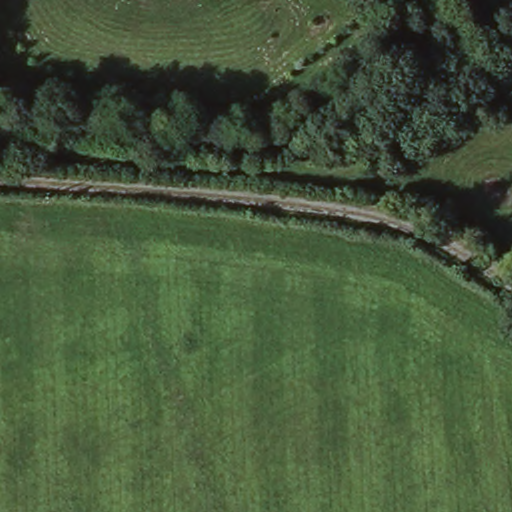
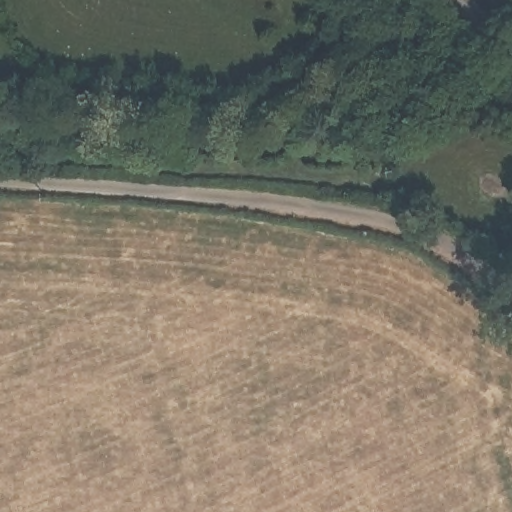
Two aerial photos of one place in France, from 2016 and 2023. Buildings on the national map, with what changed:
[]

